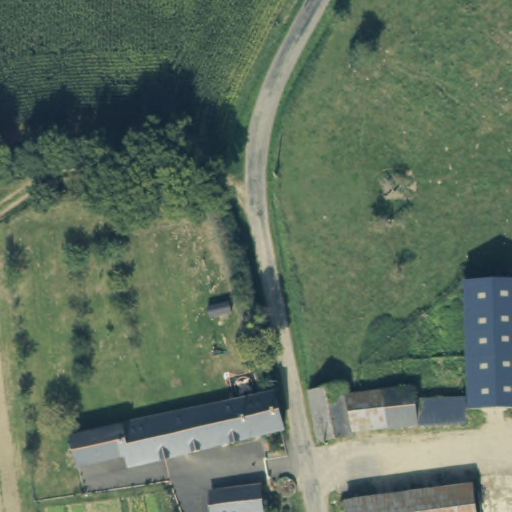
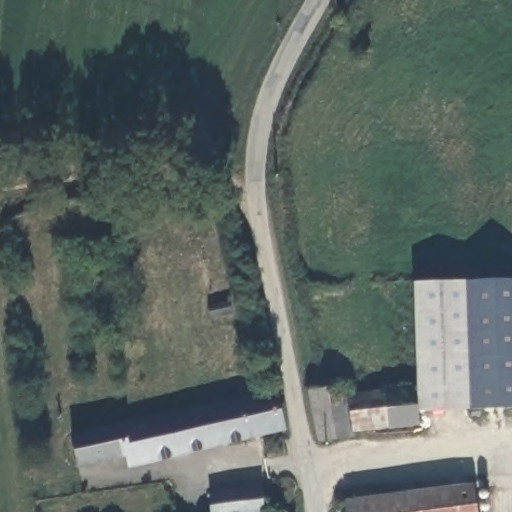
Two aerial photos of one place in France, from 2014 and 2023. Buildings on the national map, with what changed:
unchanged [(470,380),(468,284),(512,283),(512,409),(470,410),(470,380)]
new [(470,380),(470,410),(417,412),(413,284),(468,284),(470,380)]
unchanged [(349,436),(350,440),(323,445),(314,437),(306,395),(311,393),(342,387),(344,397),(349,436)]
unchanged [(413,401),(416,426),(388,430),(383,391),(411,387),(413,401)]
unchanged [(388,430),(349,436),(344,397),(383,391),(388,430)]
unchanged [(131,468),(129,456),(78,466),(72,437),(181,415),(277,397),(287,438),(131,468)]
unchanged [(295,500),(289,500),(283,495),(281,490),(282,485),(286,481),(293,480),(298,482),(300,485),(302,490),(300,497),(295,500)]
unchanged [(480,512),(358,512),(356,503),(477,488),(480,512)]
unchanged [(259,492),(261,512),(215,512),(214,495),(259,492)]

